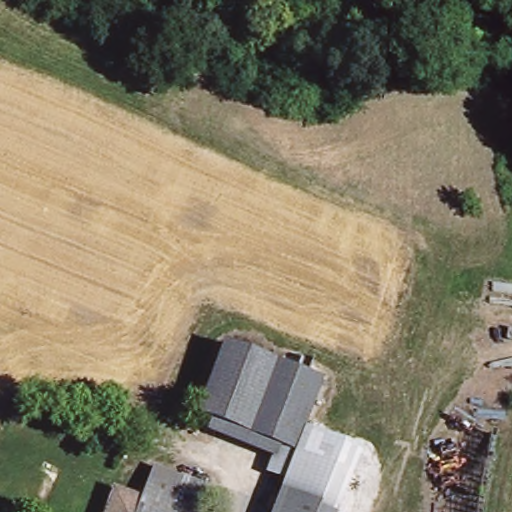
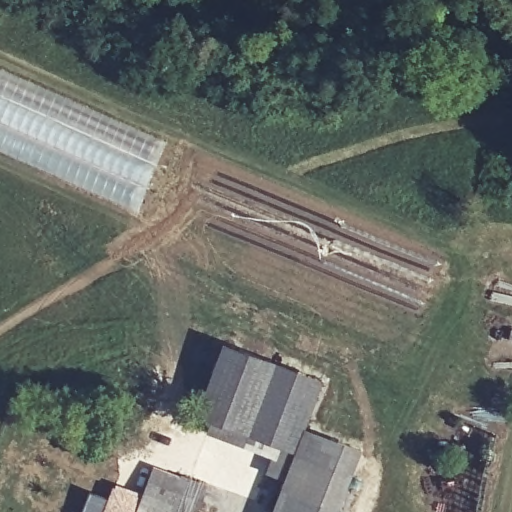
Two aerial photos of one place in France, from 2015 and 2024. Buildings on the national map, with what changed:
new [(94,111),(165,141),(136,212),(0,151),(0,68),(94,111)]
unchanged [(221,335),(315,375),(288,442),(273,437),(272,440),(192,407),(221,335)]
unchanged [(357,444),(349,467),(301,447),(310,425),(357,444)]
unchanged [(301,447),(349,467),(332,512),(267,512),(283,467),(265,460),(272,440),(273,437),(288,442),(301,447)]
unchanged [(111,481),(142,493),(149,475),(154,460),(180,471),(204,480),(192,512),(99,512),(111,481)]

